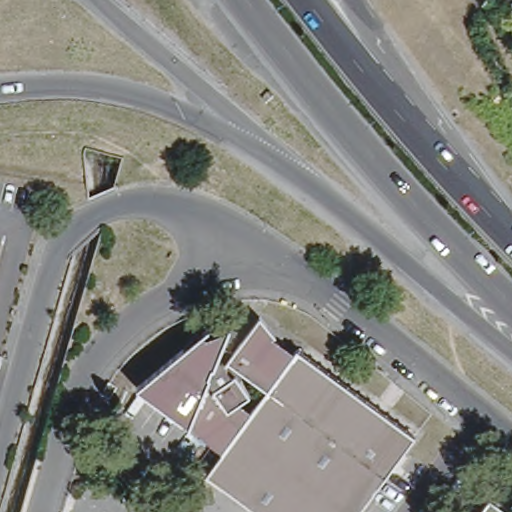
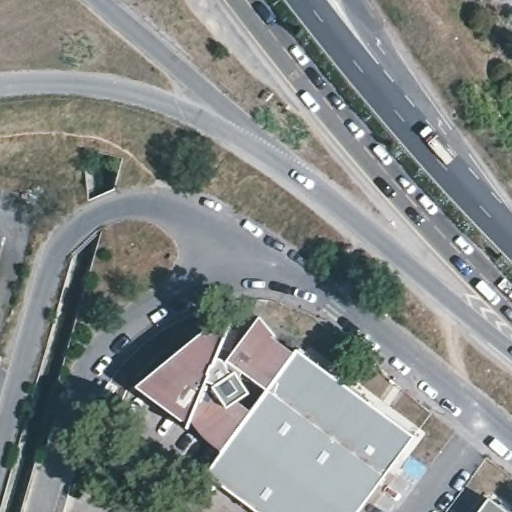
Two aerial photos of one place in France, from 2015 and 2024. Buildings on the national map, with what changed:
unchanged [(272,330),(292,345),(293,342),(415,432),(355,512),(264,512),(207,470),(226,443),(141,381),(188,343),(201,327),(211,333),(228,326),(224,337),(235,345),(260,311),(273,327),(272,330)]
unchanged [(484,512),(493,500),(509,512),(484,512)]

